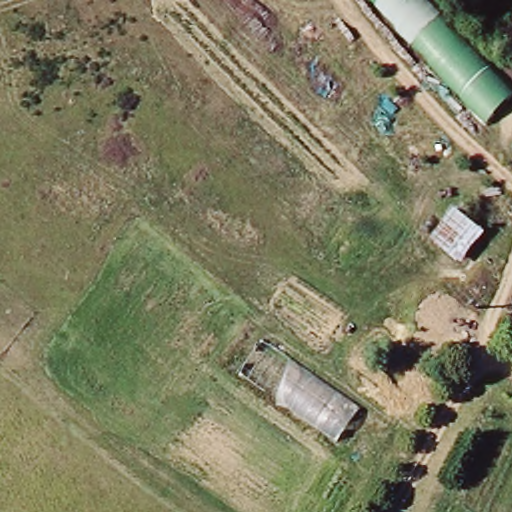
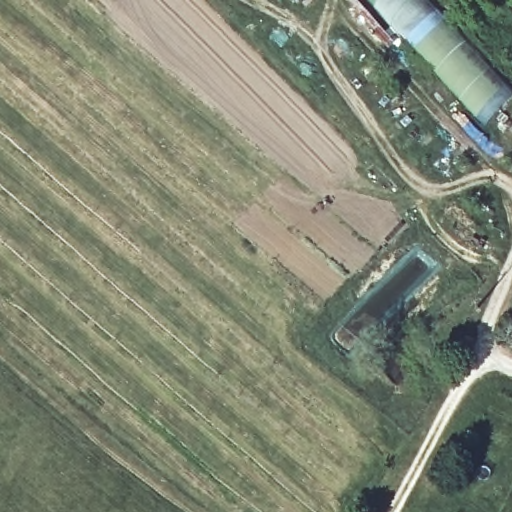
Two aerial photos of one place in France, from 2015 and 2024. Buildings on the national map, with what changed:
unchanged [(484,122),(372,0),(431,0),(512,84),(512,95),(484,122)]
unchanged [(459,252),(440,236),(463,209),(482,225),(459,252)]
demolished [(260,338),(359,407),(336,440),(238,370),(260,338)]

